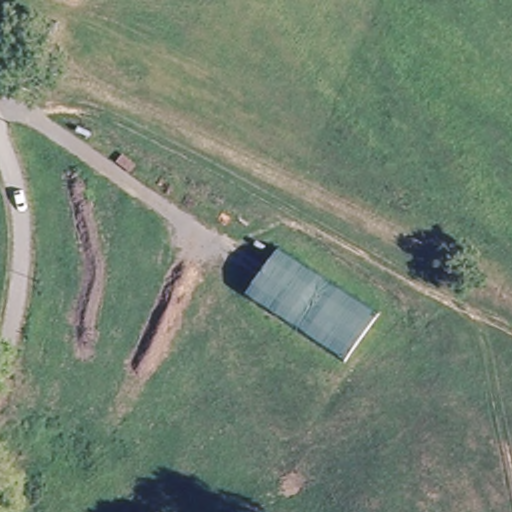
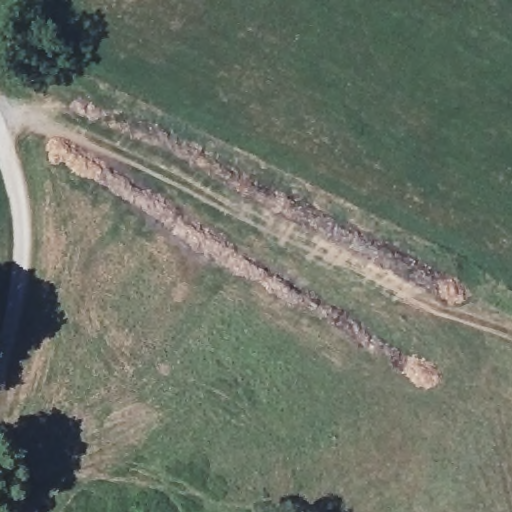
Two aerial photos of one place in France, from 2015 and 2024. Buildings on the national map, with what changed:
demolished [(382,311),(341,358),(239,293),(273,245),(382,311)]

